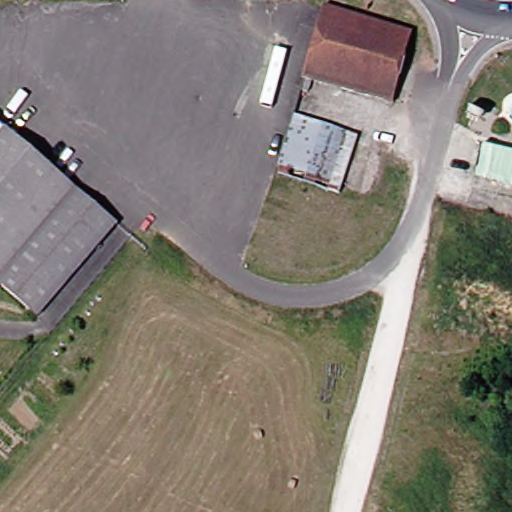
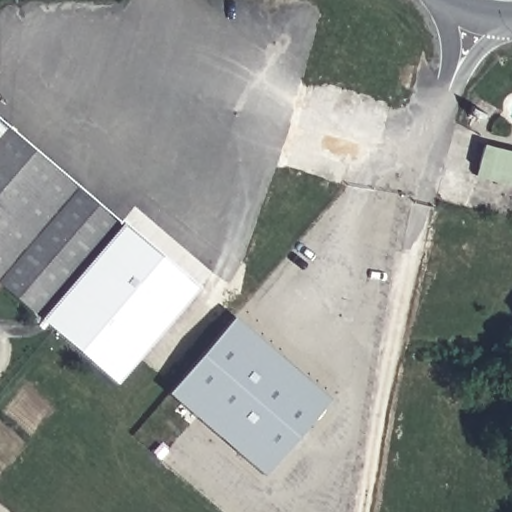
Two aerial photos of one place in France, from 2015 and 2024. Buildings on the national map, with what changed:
unchanged [(386,104),(304,82),(324,9),(406,34),(386,104)]
unchanged [(332,195),(322,192),(321,187),(271,173),(288,116),(351,139),(332,195)]
unchanged [(2,133),(15,145),(63,187),(112,228),(32,320),(0,292),(0,131),(2,133)]
unchanged [(480,153),(512,161),(512,182),(474,174),(480,153)]
new [(117,386),(41,319),(124,223),(198,289),(117,386)]
new [(264,476),(168,393),(233,316),(331,401),(264,476)]

